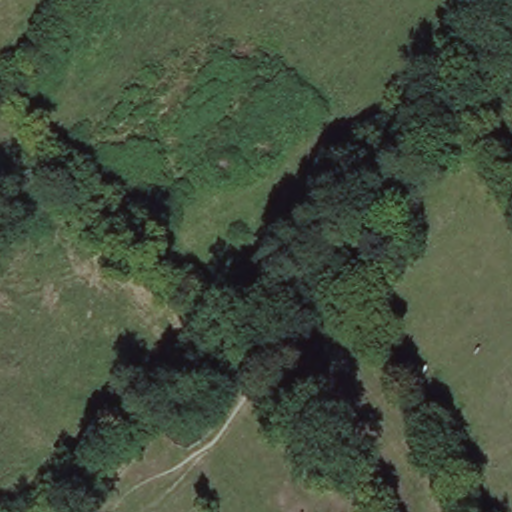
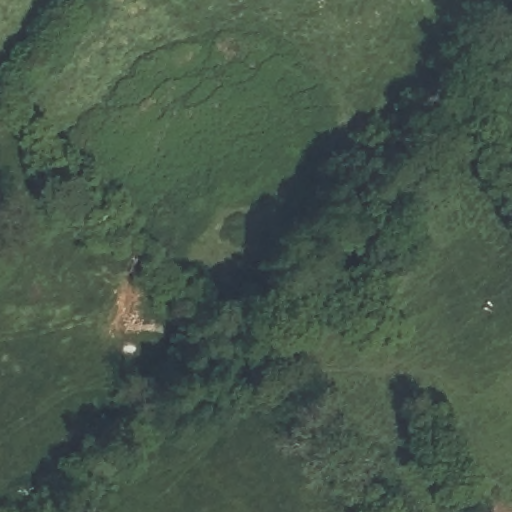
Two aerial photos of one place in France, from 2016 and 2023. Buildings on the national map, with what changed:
unchanged [(488,512),(457,512),(456,510),(479,495),(488,512)]

